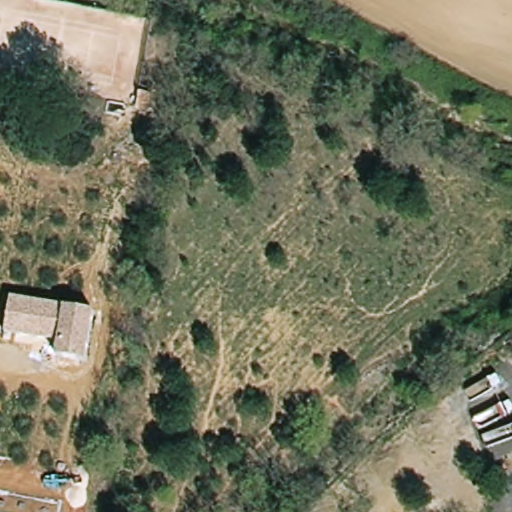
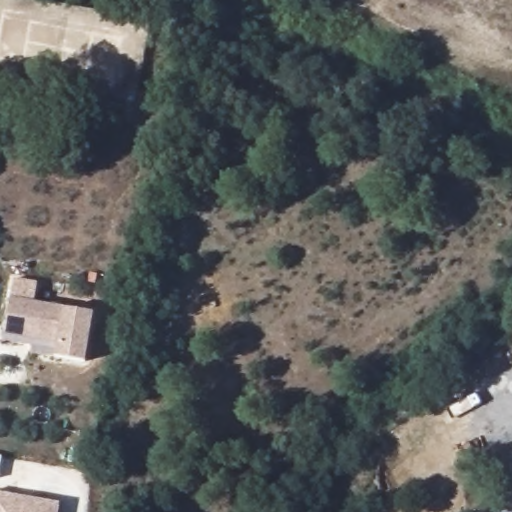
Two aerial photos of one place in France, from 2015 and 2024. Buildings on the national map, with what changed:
unchanged [(97,312),(88,363),(57,358),(60,338),(6,333),(12,299),(64,308),(97,312)]
new [(3,457),(0,469),(0,456),(3,457)]
new [(60,504),(58,512),(0,512),(0,493),(60,504)]

